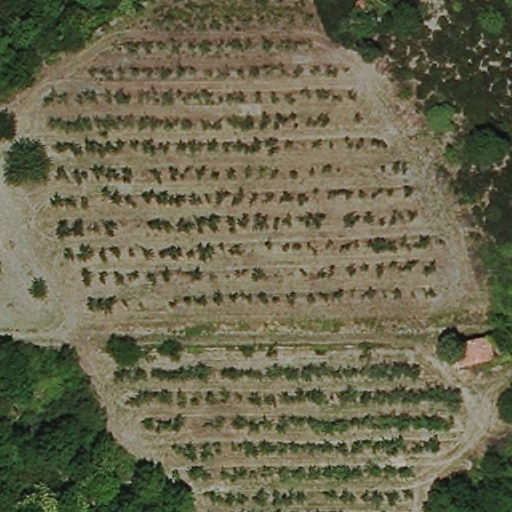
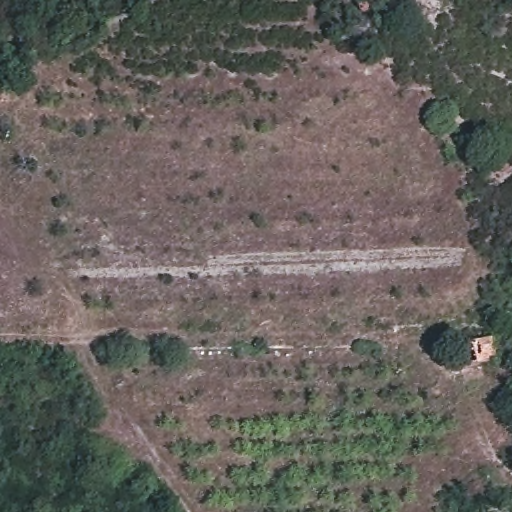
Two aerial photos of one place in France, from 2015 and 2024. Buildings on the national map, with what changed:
unchanged [(457,339),(495,333),(506,359),(467,367),(465,352),(457,339)]

